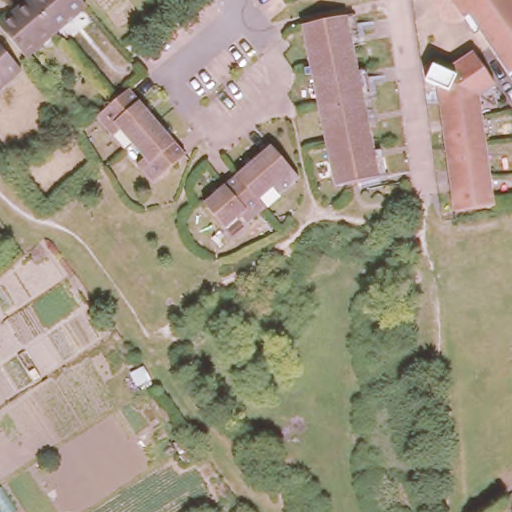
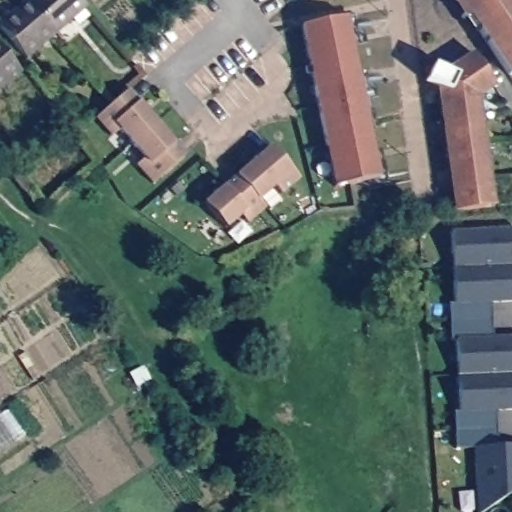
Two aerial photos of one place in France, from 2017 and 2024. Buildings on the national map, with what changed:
unchanged [(0,28),(0,22),(25,0),(29,0),(55,30),(25,56),(0,28)]
unchanged [(29,0),(81,0),(85,4),(55,30),(29,0)]
unchanged [(512,0),(512,72),(509,74),(467,14),(462,17),(450,0),(512,0)]
unchanged [(345,11),(378,172),(333,180),(301,19),(345,11)]
unchanged [(0,86),(0,46),(20,68),(0,86)]
unchanged [(441,115),(436,83),(436,81),(424,75),(432,61),(444,64),(471,47),(494,79),(477,90),(492,200),(453,205),(450,185),(447,165),(442,124),(441,115)]
unchanged [(187,154),(154,182),(138,163),(145,156),(119,126),(111,133),(95,114),(127,86),(187,154)]
unchanged [(206,201),(271,139),(300,170),(283,186),(277,180),(262,194),(268,201),(251,217),(244,211),(230,225),(206,201)]
new [(447,228),(512,226),(512,299),(450,301),(449,278),(447,251),(447,228)]
new [(488,299),(489,335),(458,336),(446,337),(445,301),(457,301),(488,299)]
new [(452,336),(512,335),(512,407),(455,410),(454,387),(452,359),(452,336)]
new [(494,444),(470,445),(470,446),(451,445),(449,410),(461,409),(493,408),(494,444)]
new [(472,486),(470,445),(494,444),(512,444),(512,488),(496,499),(477,512),(473,512),(472,486)]

